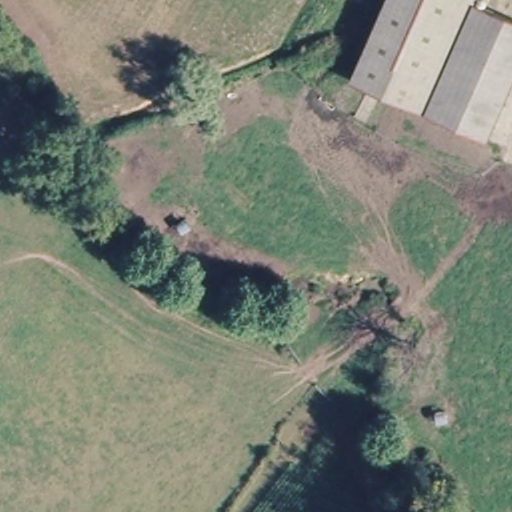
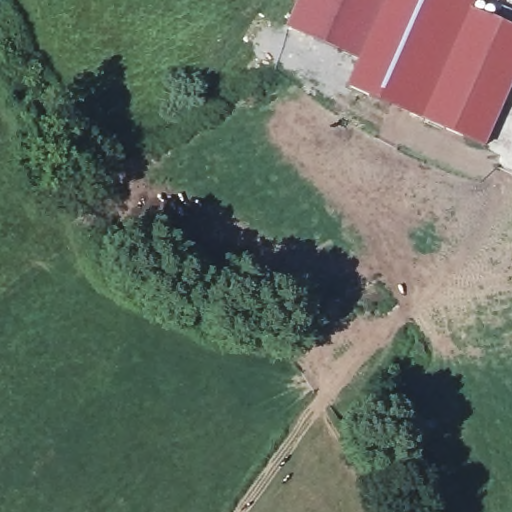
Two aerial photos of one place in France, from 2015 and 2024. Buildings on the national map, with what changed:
new [(286,28),(299,0),(390,0),(366,63),(286,28)]
unchanged [(356,88),(390,0),(461,0),(419,113),(356,88)]
unchanged [(461,0),(475,6),(431,118),(419,113),(461,0)]
unchanged [(512,96),(493,143),(431,118),(475,6),(512,20),(512,96)]

